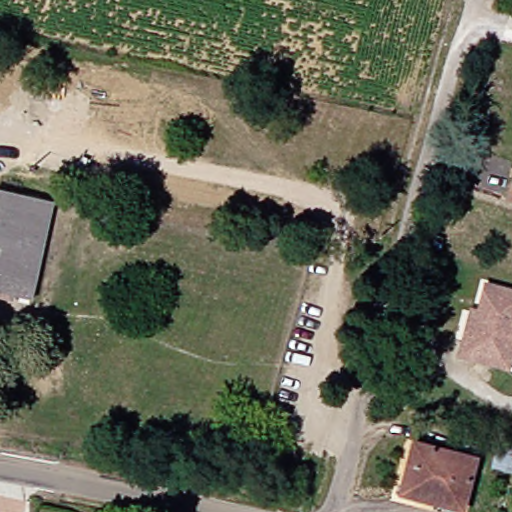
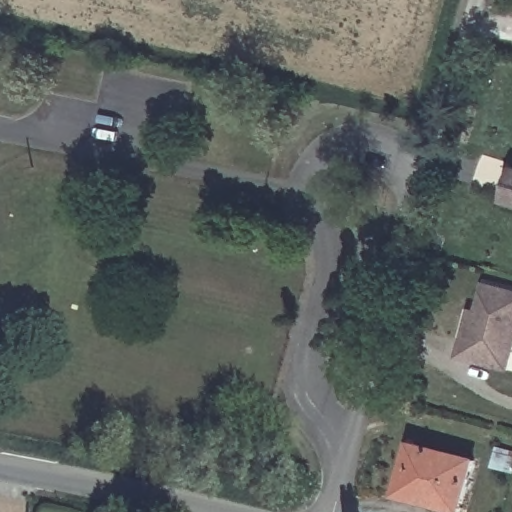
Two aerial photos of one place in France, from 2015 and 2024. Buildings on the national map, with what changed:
unchanged [(493,199),(503,169),(512,171),(512,204),(493,199)]
demolished [(26,302),(0,297),(0,196),(46,205),(26,302)]
unchanged [(512,292),(512,355),(508,371),(458,358),(463,341),(471,312),(478,314),(485,285),(512,292)]
unchanged [(392,490),(403,449),(463,465),(450,512),(445,512),(429,508),(390,497),(392,490)]

